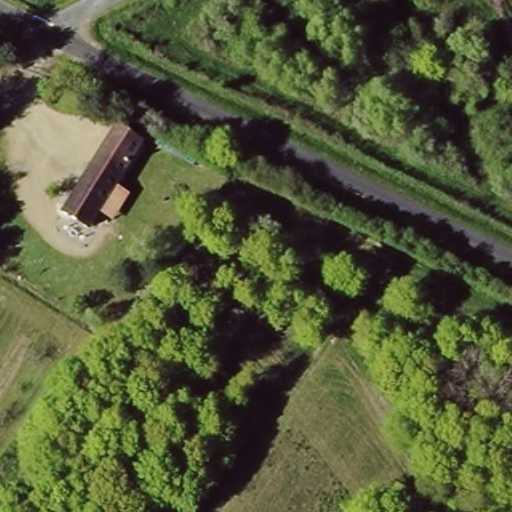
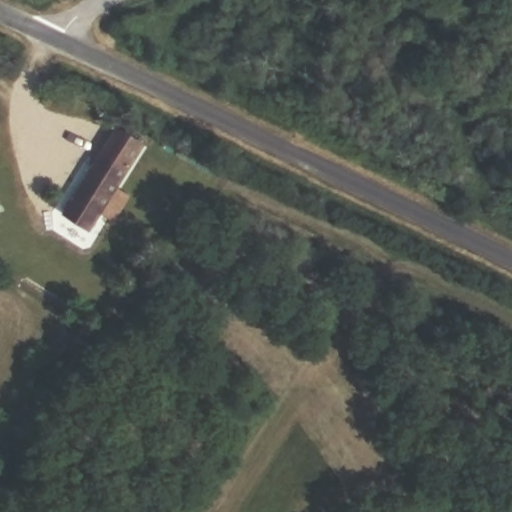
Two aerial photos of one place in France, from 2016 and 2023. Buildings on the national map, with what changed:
unchanged [(148,142),(95,230),(68,215),(121,127),(148,142)]

